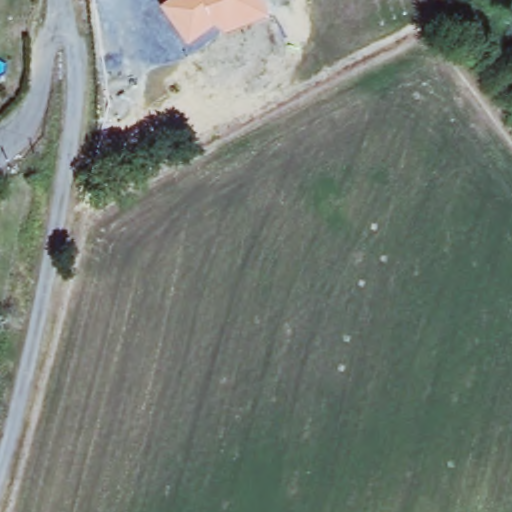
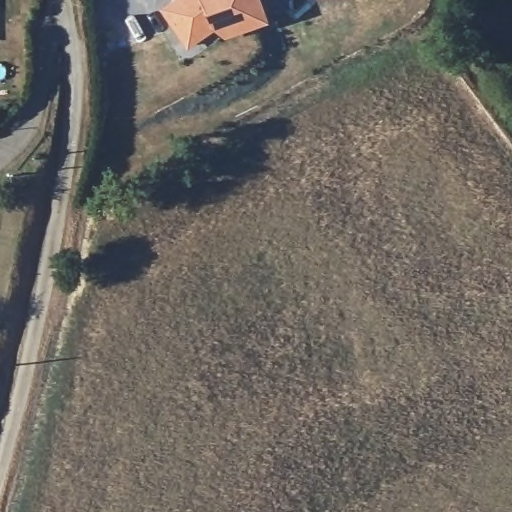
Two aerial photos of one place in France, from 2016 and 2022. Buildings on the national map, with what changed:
unchanged [(174,0),(257,0),(264,19),(224,34),(213,27),(186,44),(162,9),(174,0)]

